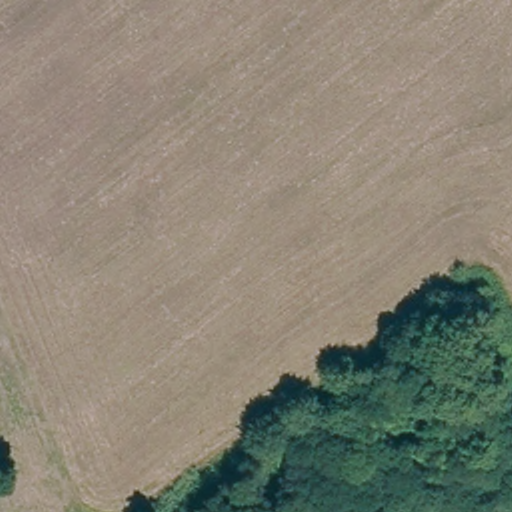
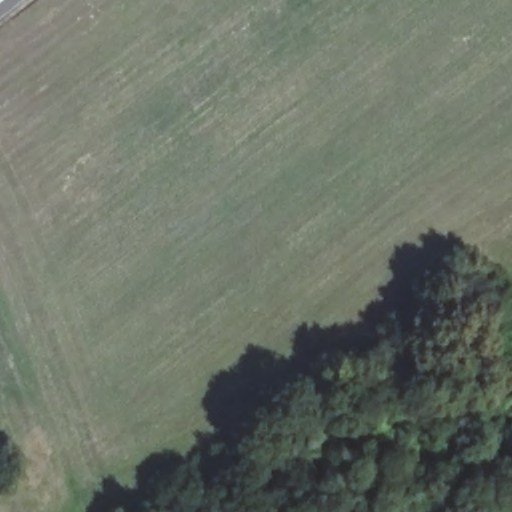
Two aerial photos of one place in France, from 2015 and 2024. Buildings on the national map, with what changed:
[]

